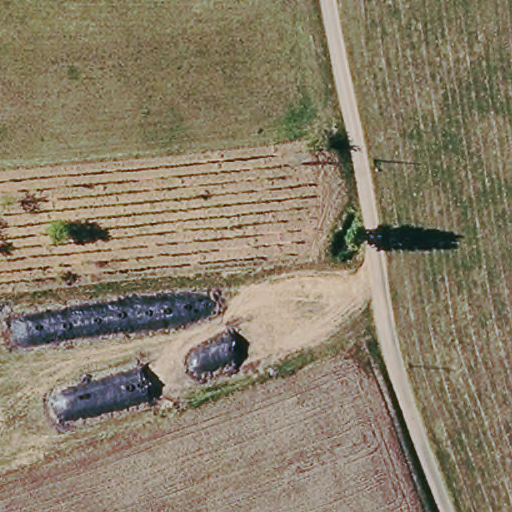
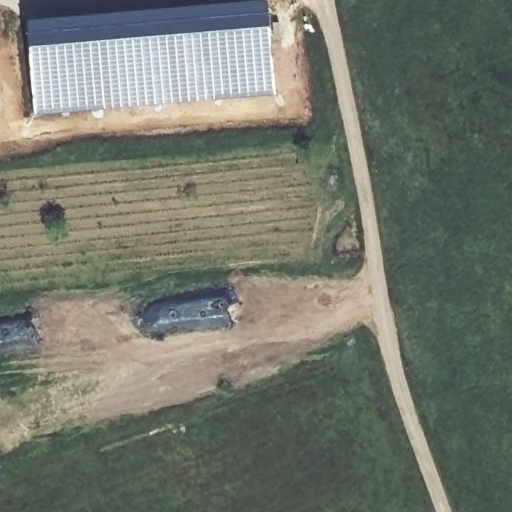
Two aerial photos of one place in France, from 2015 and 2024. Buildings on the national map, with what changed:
new [(269,11),(276,93),(35,114),(28,32),(269,11)]

